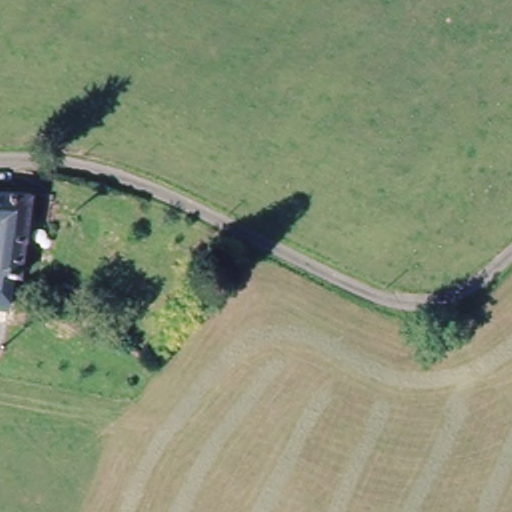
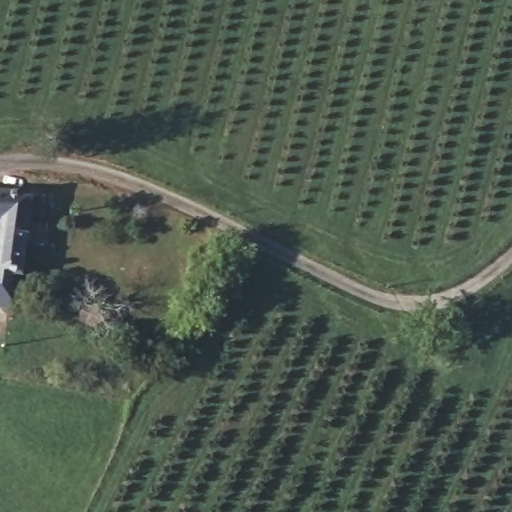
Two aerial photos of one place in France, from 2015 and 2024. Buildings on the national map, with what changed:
unchanged [(13,275),(11,289),(9,310),(0,309),(0,195),(32,197),(25,276),(13,275)]

